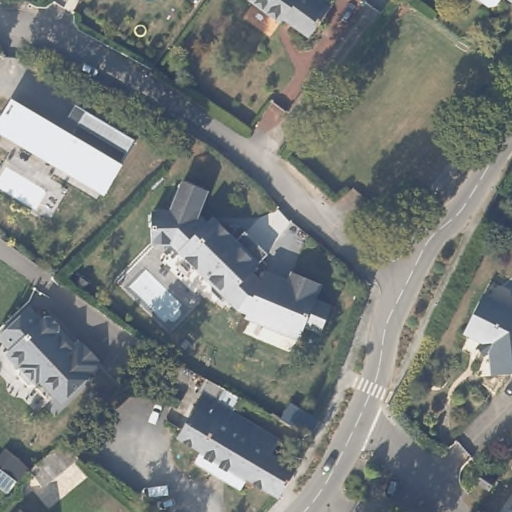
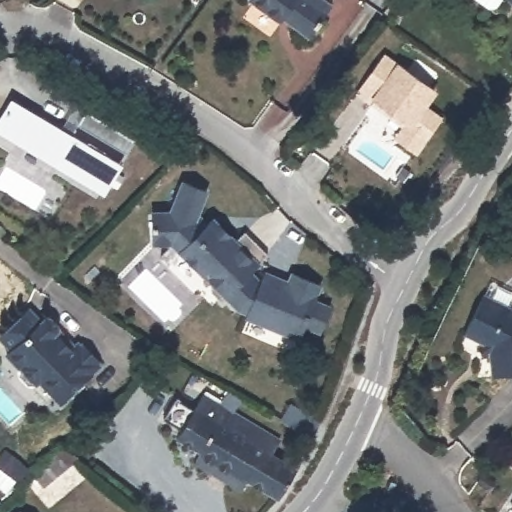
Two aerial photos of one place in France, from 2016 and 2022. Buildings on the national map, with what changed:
unchanged [(309,37),(282,18),(279,22),(249,0),(327,0),(333,4),(309,37)]
unchanged [(489,6),(480,0),(499,0),(495,5),(489,6)]
unchanged [(510,0),(512,0),(512,2),(510,0)]
new [(417,153),(393,135),(401,125),(355,93),(385,51),(398,61),(437,90),(428,105),(443,115),(417,153)]
unchanged [(0,119),(11,100),(60,129),(70,135),(87,144),(88,143),(105,153),(103,154),(120,164),(103,193),(53,164),(43,158),(0,133),(0,119)]
unchanged [(126,154),(78,124),(86,110),(135,139),(126,154)]
unchanged [(278,333),(245,319),(247,314),(237,310),(225,298),(220,302),(213,294),(210,292),(210,283),(171,244),(153,244),(152,212),(170,212),(183,182),(207,192),(197,215),(205,223),(208,224),(211,220),(212,219),(221,227),(235,242),(244,232),(260,248),(267,255),(249,273),(257,280),(260,282),(264,274),(280,280),(287,283),(291,274),(320,287),(313,302),(329,309),(319,334),(303,327),(299,336),(297,340),(278,333)]
unchanged [(493,376),(490,350),(484,343),(464,332),(483,294),(512,308),(512,373),(493,376)]
unchanged [(14,362),(13,364),(0,350),(0,336),(34,303),(55,325),(60,320),(67,320),(76,330),(76,337),(75,338),(88,351),(87,352),(83,356),(95,368),(92,372),(65,398),(52,384),(49,388),(44,388),(36,380),(36,378),(19,361),(16,364),(14,362)]
unchanged [(276,459),(301,474),(284,503),(252,484),(245,494),(199,467),(202,462),(206,456),(202,454),(183,442),(208,399),(203,396),(211,384),(247,403),(238,417),(285,445),(276,459)]
unchanged [(78,457),(78,458),(43,487),(29,471),(60,444),(78,457)]
unchanged [(511,468),(512,466),(512,469),(511,468)]
unchanged [(483,473),(495,481),(489,489),(477,481),(483,473)]

